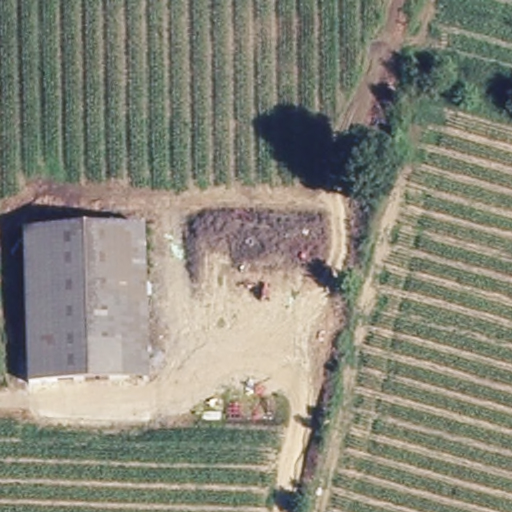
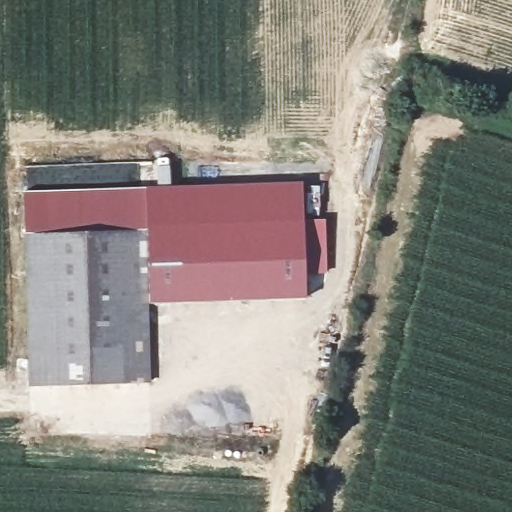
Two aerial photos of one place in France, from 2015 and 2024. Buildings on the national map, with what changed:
new [(144,234),(25,241),(25,232),(24,193),(146,188),(302,182),(303,221),(325,220),(327,273),(305,274),(306,297),(145,303),(144,234)]
unchanged [(144,234),(146,377),(28,381),(22,241),(144,234)]

